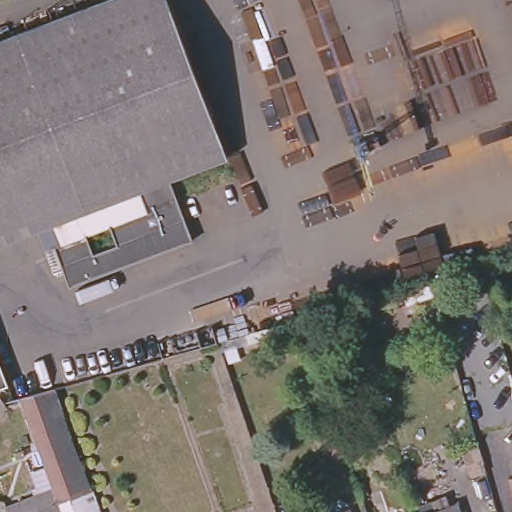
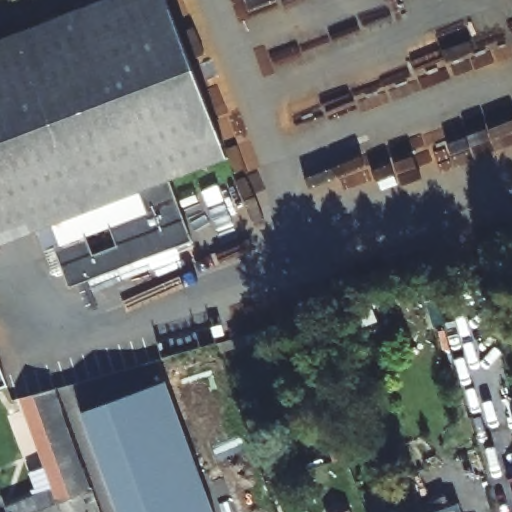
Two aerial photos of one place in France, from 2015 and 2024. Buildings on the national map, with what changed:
unchanged [(104,0),(166,0),(230,154),(168,179),(192,244),(62,293),(35,231),(0,245),(0,41),(104,0)]
unchanged [(5,387),(0,388),(0,373),(5,387)]
new [(80,413),(166,381),(214,512),(116,512),(80,413)]
unchanged [(45,451),(23,392),(53,385),(73,440),(45,451)]
unchanged [(73,440),(92,488),(62,498),(30,512),(12,512),(9,503),(36,494),(33,486),(37,484),(32,467),(48,461),(45,451),(73,440)]
unchanged [(100,512),(30,512),(62,498),(92,488),(100,512)]
unchanged [(450,507),(452,512),(436,512),(450,507)]
unchanged [(348,510),(349,512),(342,512),(348,510)]

